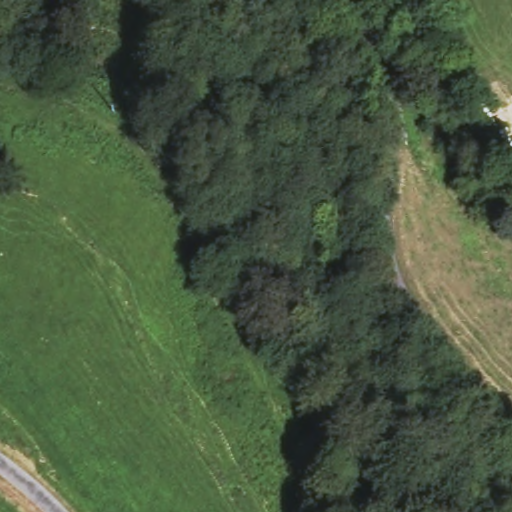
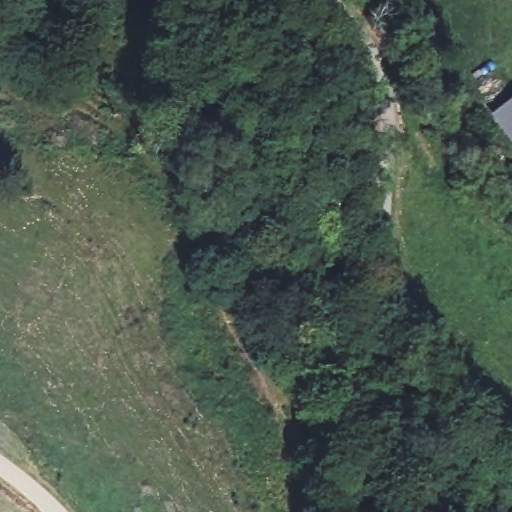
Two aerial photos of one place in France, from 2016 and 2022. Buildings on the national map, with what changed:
new [(512,97),(512,140),(492,114),(512,97)]

